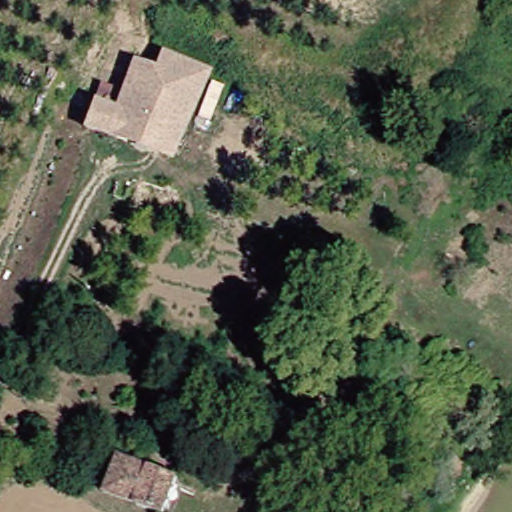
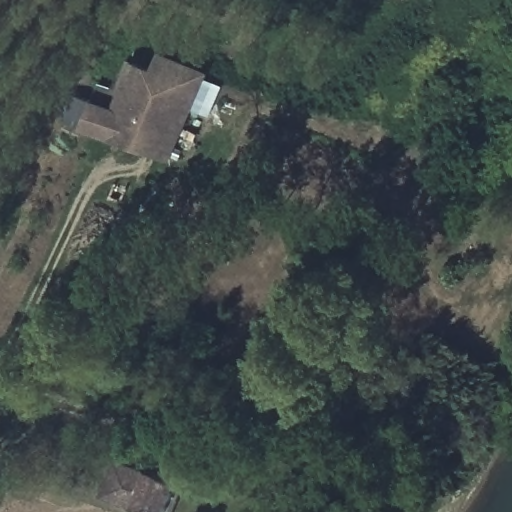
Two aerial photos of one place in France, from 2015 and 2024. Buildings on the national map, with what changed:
unchanged [(75,127),(85,100),(104,108),(124,60),(147,70),(154,54),(197,72),(160,162),(127,148),(100,137),(75,127)]
unchanged [(153,511),(96,487),(109,458),(164,480),(153,511)]

